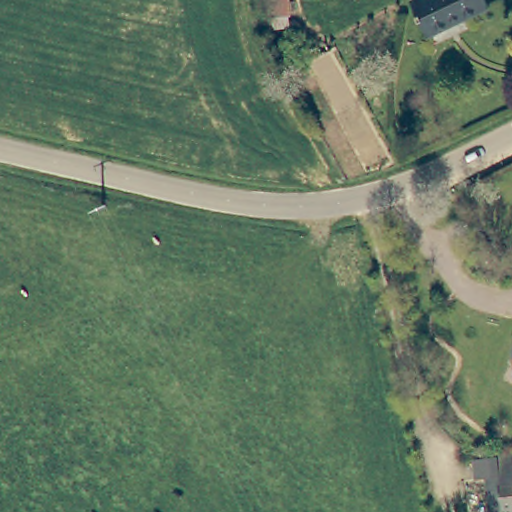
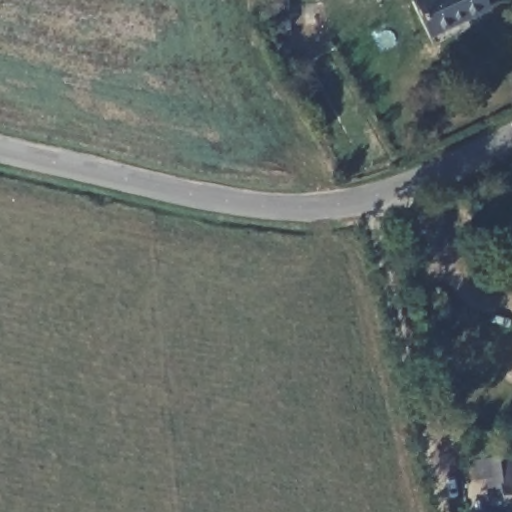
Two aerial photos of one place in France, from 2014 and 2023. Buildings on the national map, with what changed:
unchanged [(411,0),(485,0),(489,7),(428,36),(411,0)]
unchanged [(482,481),(477,482),(472,482),(469,464),(479,463),(512,458),(512,512),(485,512),(482,481)]

